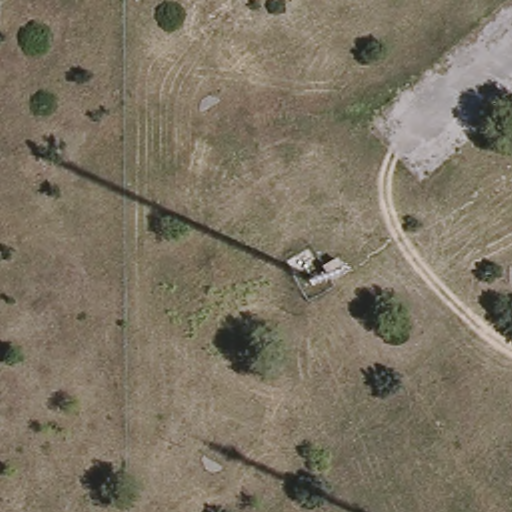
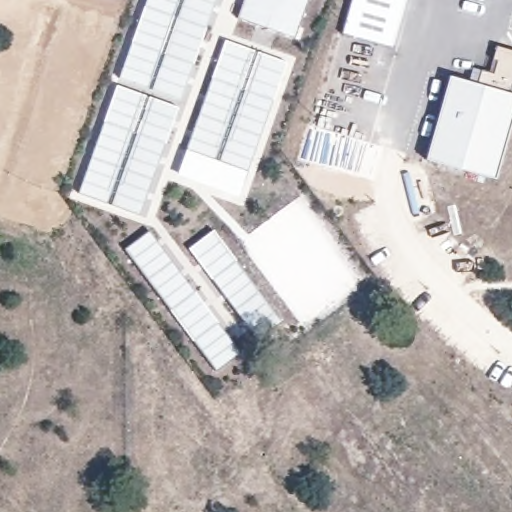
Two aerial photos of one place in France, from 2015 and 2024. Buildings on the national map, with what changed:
new [(120,77),(147,0),(216,0),(180,99),(120,77)]
new [(240,17),(245,0),(308,0),(295,38),(240,17)]
new [(343,32),(352,0),(406,0),(393,47),(343,32)]
new [(511,0),(512,0),(512,16),(507,15),(511,0)]
new [(285,62),(247,170),(243,169),(235,194),(178,174),(226,40),(285,62)]
new [(496,72),(500,58),(494,57),(497,46),(512,49),(512,76),(508,87),(482,80),(485,69),(496,72)]
new [(450,84),(511,100),(491,176),(430,160),(450,84)]
new [(178,107),(138,212),(78,192),(117,85),(178,107)]
new [(149,230),(238,352),(216,369),(125,249),(149,230)]
new [(213,230),(280,319),(257,335),(191,249),(213,230)]

